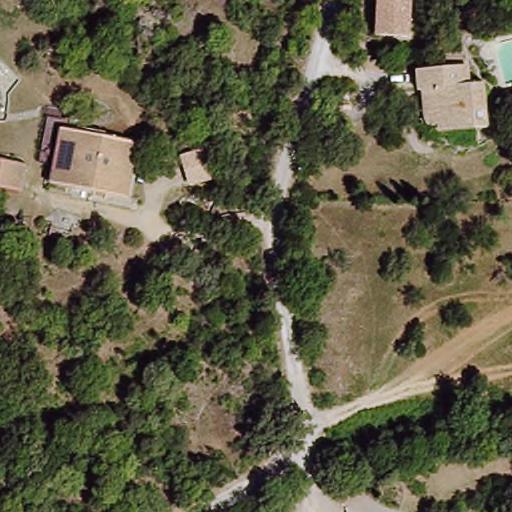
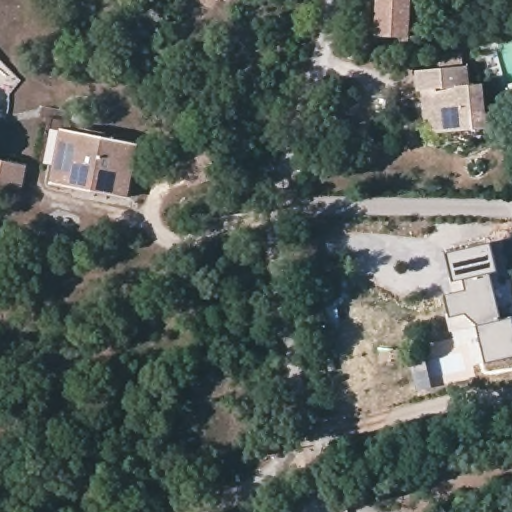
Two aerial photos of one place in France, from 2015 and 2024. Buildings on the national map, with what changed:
unchanged [(409,8),(408,34),(374,35),(375,0),(414,0),(414,8),(409,8)]
unchanged [(418,86),(417,70),(465,68),(463,86),(483,87),(482,132),(433,134),(421,122),(418,119),(418,86)]
unchanged [(127,199),(55,185),(61,129),(138,142),(127,199)]
new [(207,153),(213,182),(192,187),(186,157),(207,153)]
unchanged [(0,185),(0,159),(31,161),(27,188),(0,185)]
new [(466,290),(464,279),(453,281),(446,253),(491,244),(497,270),(489,271),(501,320),(512,318),(512,357),(486,362),(478,324),(466,313),(450,315),(445,294),(466,290)]

